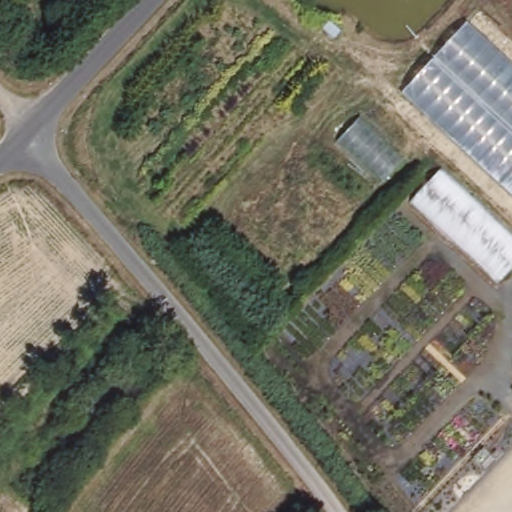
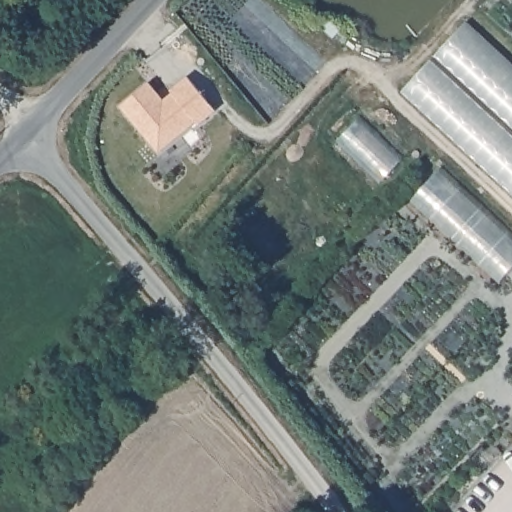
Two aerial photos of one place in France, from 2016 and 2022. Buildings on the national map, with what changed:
unchanged [(400,93),(467,20),(512,62),(512,194),(400,93)]
new [(165,102),(175,95),(172,92),(190,77),(218,111),(201,125),(199,122),(161,153),(122,109),(150,84),(165,102)]
unchanged [(500,283),(410,202),(441,169),(512,236),(512,269),(500,283)]

